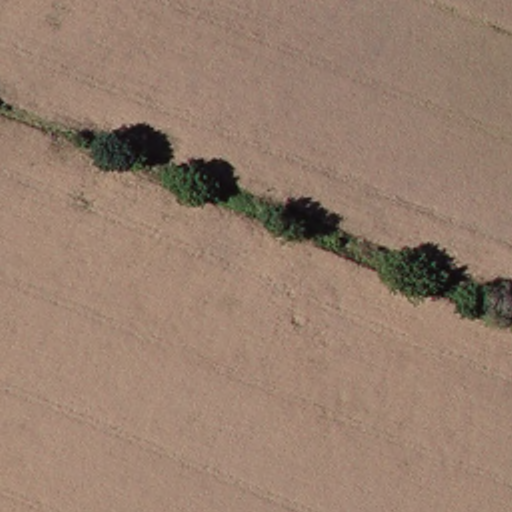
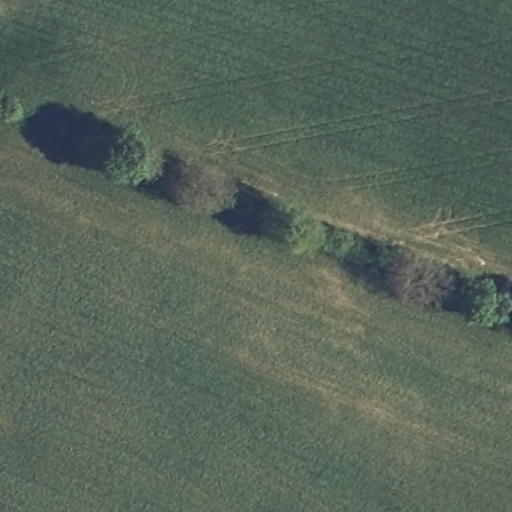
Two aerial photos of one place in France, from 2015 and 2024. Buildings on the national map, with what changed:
[]

